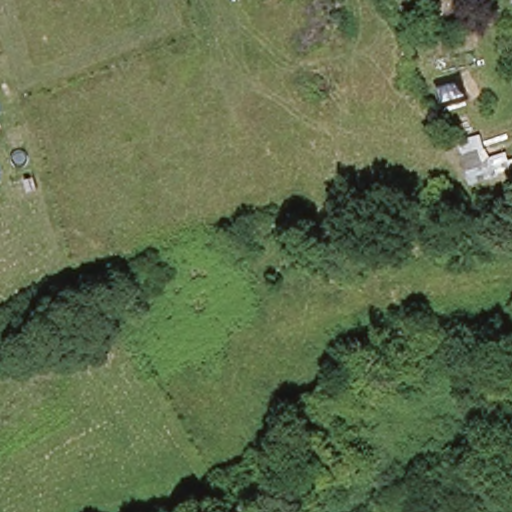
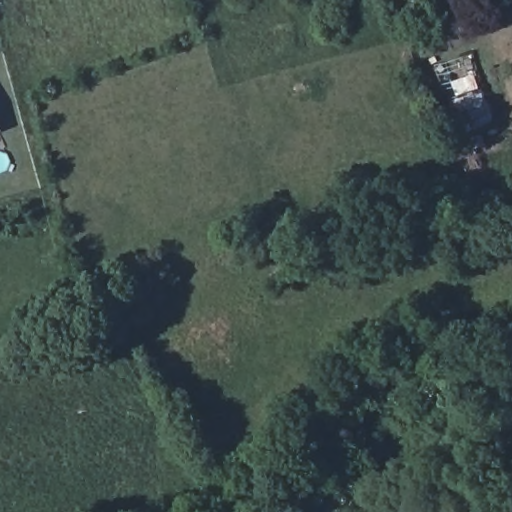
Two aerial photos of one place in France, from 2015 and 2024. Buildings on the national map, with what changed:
unchanged [(10,131),(0,135),(0,110),(10,131)]

